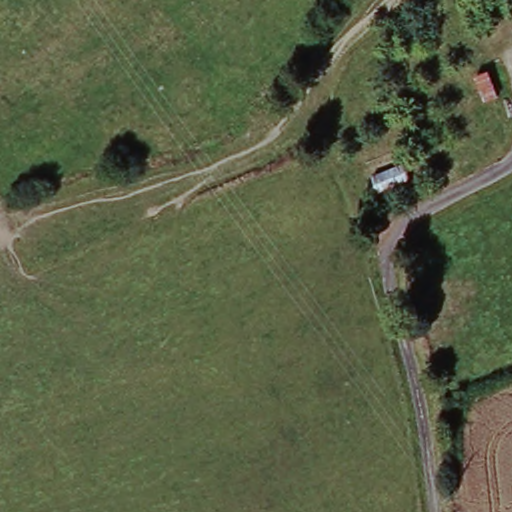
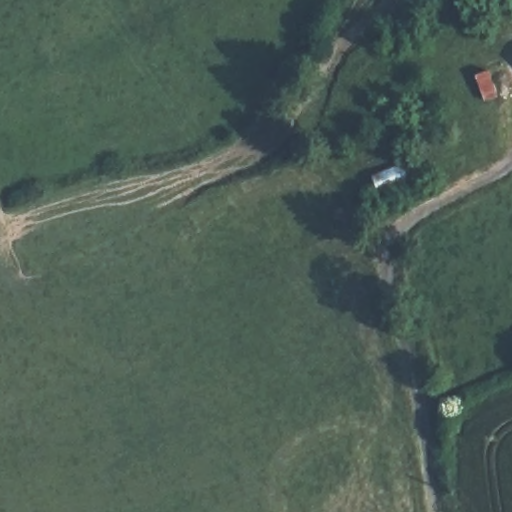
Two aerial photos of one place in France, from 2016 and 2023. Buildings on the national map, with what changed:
unchanged [(402,168),(410,182),(383,195),(378,180),(402,168)]

